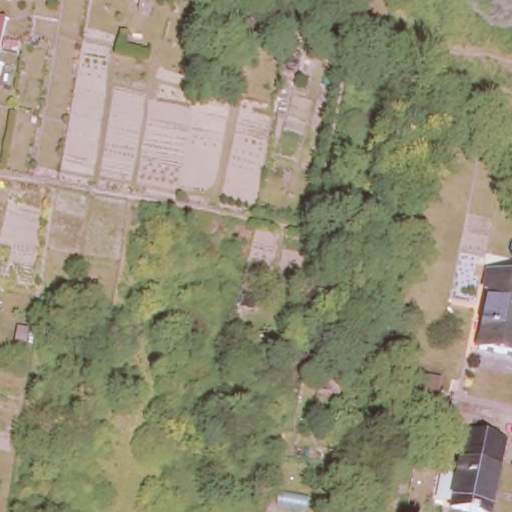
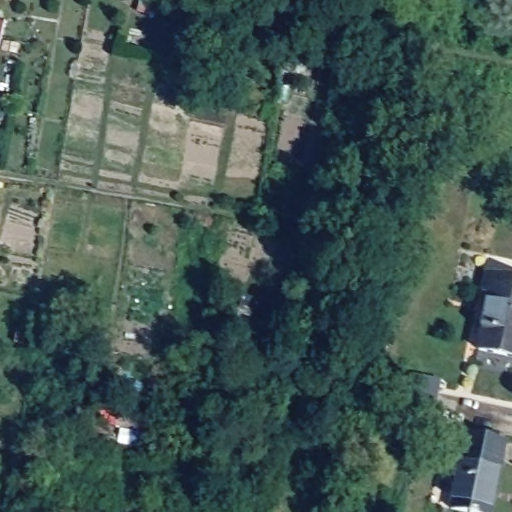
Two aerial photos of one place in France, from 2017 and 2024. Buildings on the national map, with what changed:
unchanged [(0,52),(0,19),(9,21),(5,37),(2,52),(0,52)]
unchanged [(343,28),(345,21),(352,22),(350,30),(343,28)]
unchanged [(497,292),(491,290),(495,274),(512,278),(512,355),(485,348),(497,292)]
unchanged [(99,355),(96,371),(85,369),(87,353),(99,355)]
unchanged [(400,420),(405,396),(410,370),(441,376),(437,402),(432,426),(400,420)]
unchanged [(222,391),(220,402),(214,401),(215,389),(222,391)]
unchanged [(356,395),(354,409),(347,408),(350,394),(356,395)]
unchanged [(463,455),(467,438),(468,433),(476,435),(477,429),(497,433),(497,439),(506,441),(502,461),(492,512),(465,512),(452,509),(463,455)]
unchanged [(284,471),(294,472),(292,481),(283,479),(284,471)]

